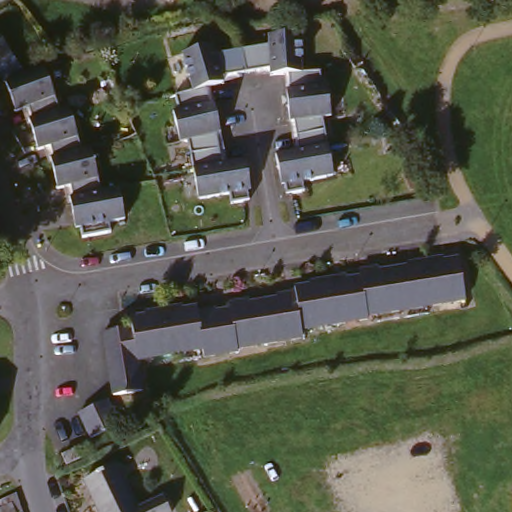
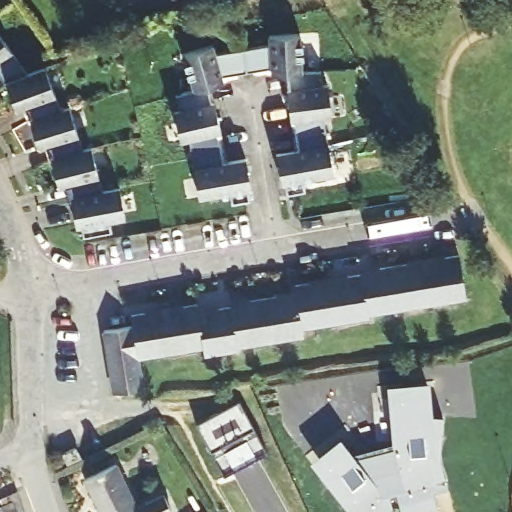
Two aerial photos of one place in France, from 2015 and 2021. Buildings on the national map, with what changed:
unchanged [(318,79),(321,95),(327,94),(332,126),(325,128),(334,184),(303,190),(304,199),(286,202),(282,176),(278,177),(276,161),(299,157),(294,128),(291,129),(287,112),(291,112),(286,81),(269,83),(268,77),(226,84),(228,90),(211,94),(216,125),(219,124),(223,140),(218,140),(223,170),(246,166),(249,181),(245,182),(249,208),(231,211),(229,202),(198,207),(188,150),(181,151),(176,120),(181,119),(179,103),(196,100),(191,63),(222,58),(223,66),(265,59),(264,51),(294,46),(301,82),(318,79)]
unchanged [(3,89),(0,85),(0,49),(21,77),(3,89)]
unchanged [(60,111),(31,121),(29,112),(21,116),(14,86),(48,74),(60,111)]
unchanged [(79,154),(53,161),(47,147),(41,150),(36,127),(69,114),(79,154)]
unchanged [(99,195),(74,200),(73,188),(61,192),(56,166),(89,153),(99,195)]
unchanged [(123,226),(104,228),(105,241),(83,247),(81,232),(76,205),(121,194),(123,226)]
unchanged [(468,273),(472,297),(375,314),(375,317),(343,322),(333,282),(353,279),(356,276),(386,270),(386,268),(411,263),(413,266),(451,260),(450,256),(453,256),(465,254),(468,273)]
unchanged [(309,328),(310,335),(245,346),(245,348),(213,353),(211,346),(146,358),(150,387),(121,392),(111,330),(140,325),(138,315),(157,312),(158,315),(191,310),(191,306),(204,304),(206,314),(224,311),(224,309),(256,304),(256,301),(284,296),(285,299),(303,296),(301,285),(316,283),(316,285),(333,282),(343,322),(309,328)]
new [(379,497),(383,512),(355,512),(353,504),(344,494),(335,497),(329,479),(331,477),(316,458),(328,450),(327,448),(341,437),(359,459),(393,452),(389,400),(403,398),(403,383),(421,381),(423,395),(429,396),(430,415),(436,415),(437,435),(433,435),(434,456),(446,491),(434,493),(439,512),(402,512),(397,492),(379,497)]
unchanged [(108,433),(84,445),(73,422),(96,409),(108,433)]
unchanged [(73,465),(63,471),(58,460),(69,455),(73,465)]
unchanged [(92,512),(81,488),(111,472),(131,512),(92,512)]
unchanged [(164,512),(141,512),(159,502),(164,512)]
unchanged [(2,512),(11,508),(13,512),(2,512)]

